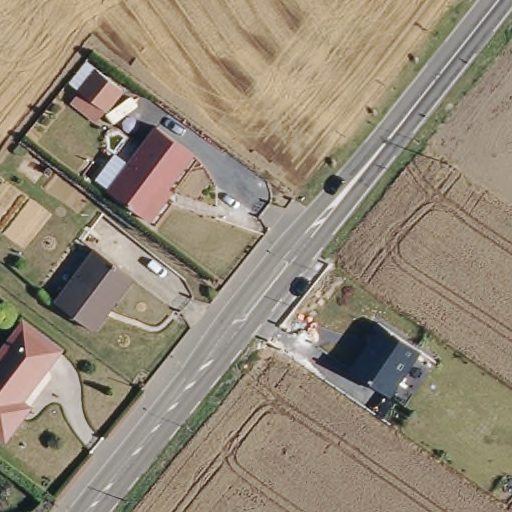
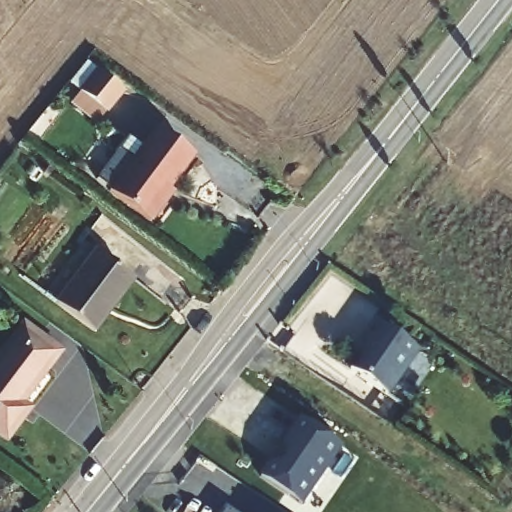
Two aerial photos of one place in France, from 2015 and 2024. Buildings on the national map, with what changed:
unchanged [(98,123),(69,103),(92,68),(123,92),(98,123)]
unchanged [(155,123),(191,150),(159,193),(164,197),(146,218),(106,189),(126,162),(155,123)]
unchanged [(89,331),(51,301),(92,246),(127,273),(98,311),(102,314),(89,331)]
unchanged [(15,404),(23,410),(5,434),(0,431),(0,349),(23,318),(58,344),(15,404)]
unchanged [(389,398),(348,370),(379,323),(420,353),(389,398)]
new [(303,508),(260,478),(269,464),(273,467),(281,447),(300,420),(316,431),(312,437),(340,456),(303,508)]

